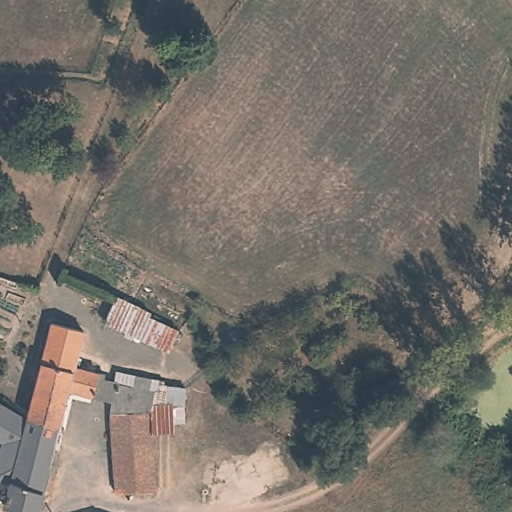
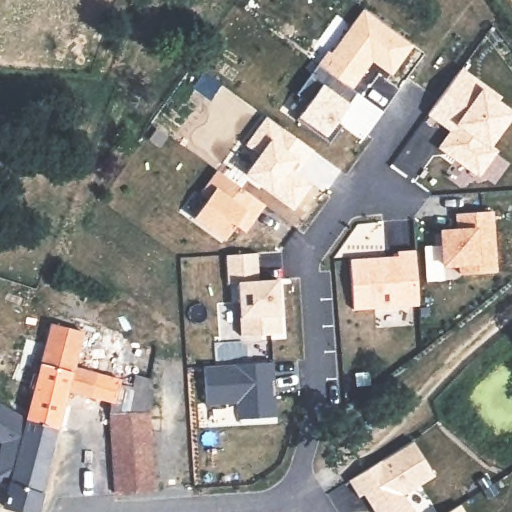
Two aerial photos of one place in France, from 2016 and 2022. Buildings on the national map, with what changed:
new [(295,95),(317,66),(317,65),(327,53),(331,54),(363,10),(412,46),(391,76),(371,62),(351,90),(356,94),(348,105),(336,122),(342,126),(328,145),(295,121),(307,104),(295,95)]
new [(428,114),(461,69),(499,98),(496,102),(512,113),(512,114),(488,146),(496,151),(478,175),(450,155),(439,148),(444,141),(451,131),(428,114)]
new [(207,199),(201,194),(217,172),(263,205),(253,219),(250,218),(240,230),(234,226),(224,240),(193,218),(207,199)]
new [(452,231),(456,235),(462,235),(460,215),(489,213),(495,277),(464,279),(463,269),(446,271),(443,232),(452,231)]
new [(384,258),(385,263),(398,262),(397,252),(415,251),(418,306),(353,310),(350,260),(384,258)]
new [(257,254),(258,282),(277,281),(281,335),(241,337),(238,284),(228,284),(226,257),(257,254)]
unchanged [(156,314),(155,319),(180,330),(169,353),(104,324),(118,294),(156,314)]
unchanged [(80,320),(70,366),(91,372),(90,378),(106,382),(107,387),(115,389),(115,396),(124,399),(125,406),(140,412),(141,431),(147,493),(118,492),(111,404),(63,396),(56,426),(22,417),(48,316),(80,320)]
new [(273,363),(274,380),(271,381),(272,398),(275,397),(276,418),(237,420),(237,404),(206,406),(204,367),(273,363)]
unchanged [(185,421),(171,421),(172,433),(141,431),(140,412),(125,406),(124,399),(115,396),(115,389),(114,370),(184,388),(185,421)]
unchanged [(38,497),(35,512),(20,512),(0,508),(0,506),(5,484),(0,482),(0,405),(22,417),(56,426),(38,497)]
new [(412,442),(434,476),(403,495),(414,512),(375,512),(374,511),(377,509),(367,492),(359,497),(349,481),(412,442)]
new [(460,504),(465,512),(449,512),(460,504)]

